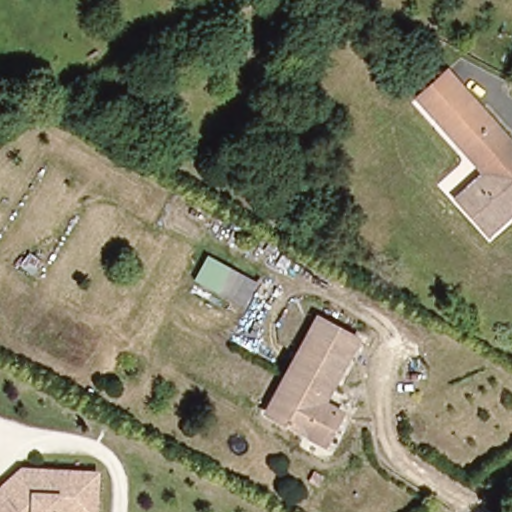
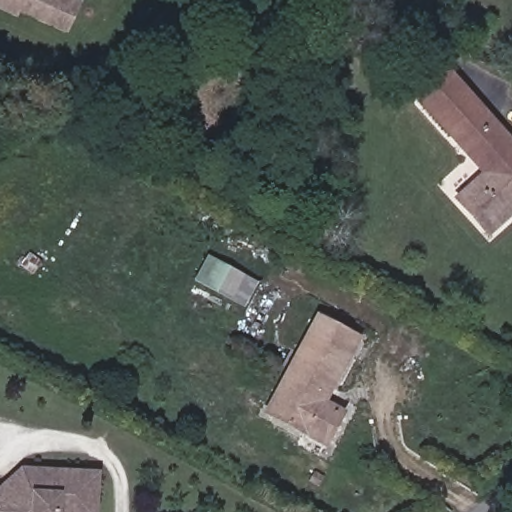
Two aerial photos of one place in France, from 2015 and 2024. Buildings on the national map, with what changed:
new [(69,35),(21,13),(19,18),(0,10),(0,0),(84,0),(69,35)]
unchanged [(459,144),(423,104),(430,97),(439,107),(448,99),(439,89),(452,78),(498,130),(474,150),(469,156),(459,144)]
unchanged [(477,222),(462,203),(494,176),(484,163),(509,142),(512,146),(512,223),(492,239),(477,222)]
unchanged [(260,281),(247,307),(194,284),(209,255),(260,281)]
unchanged [(264,409),(314,317),(352,338),(320,398),(338,409),(321,440),(264,409)]
unchanged [(20,470),(98,474),(96,512),(0,512),(0,511),(0,486),(5,482),(20,470)]

